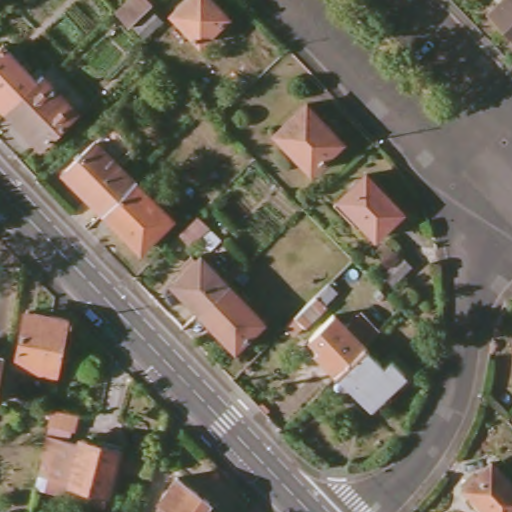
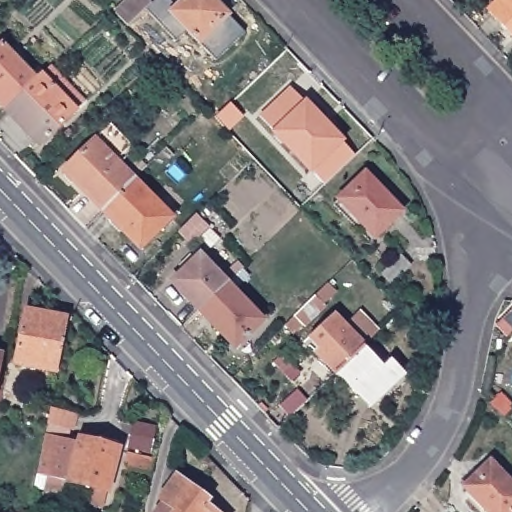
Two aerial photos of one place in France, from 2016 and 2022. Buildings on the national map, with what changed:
unchanged [(126,27),(112,12),(126,0),(145,0),(150,5),(126,27)]
unchanged [(202,42),(175,13),(188,0),(215,0),(230,16),(202,42)]
unchanged [(488,10),(499,0),(512,0),(512,35),(488,10)]
unchanged [(159,21),(141,37),(130,27),(148,9),(159,21)]
unchanged [(0,103),(0,48),(2,46),(36,80),(6,109),(0,103)]
unchanged [(41,75),(77,112),(42,147),(6,109),(36,80),(41,75)]
unchanged [(342,141),(312,170),(277,133),(306,103),(342,141)]
unchanged [(96,140),(112,124),(133,145),(117,161),(135,179),(102,211),(63,172),(96,140)]
unchanged [(402,212),(376,237),(340,200),(366,174),(402,212)]
unchanged [(171,217),(139,249),(102,211),(135,179),(171,217)]
unchanged [(210,227),(190,246),(179,233),(198,215),(210,227)]
unchanged [(171,284),(201,256),(227,283),(197,312),(171,284)]
unchanged [(411,266),(392,283),(383,274),(401,256),(411,266)]
unchanged [(227,283),(262,320),(233,348),(197,312),(227,283)]
unchanged [(332,310),(310,331),(301,321),(322,301),(332,310)]
unchanged [(69,320),(58,373),(16,366),(25,317),(45,321),(46,315),(69,320)]
unchanged [(323,362),(328,357),(313,342),(337,319),(369,352),(340,380),(323,362)]
unchanged [(369,352),(388,372),(397,364),(410,377),(378,408),(366,395),(360,401),(340,380),(369,352)]
unchanged [(0,381),(0,356),(5,357),(0,381)]
unchanged [(81,419),(78,434),(52,428),(55,413),(81,419)]
unchanged [(70,484),(66,497),(47,492),(50,481),(41,479),(45,460),(50,437),(81,445),(83,438),(123,448),(112,494),(70,484)]
unchanged [(156,462),(153,473),(152,477),(125,471),(128,455),(156,462)]
unchanged [(512,482),(512,512),(486,512),(462,487),(491,460),(512,482)]
unchanged [(166,501),(160,496),(176,477),(210,502),(206,507),(214,512),(158,512),(166,501)]

